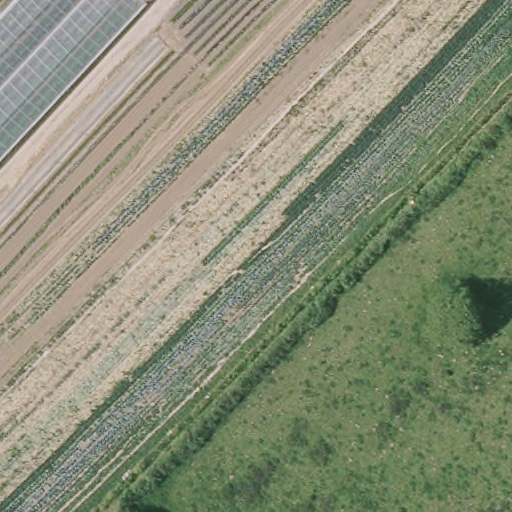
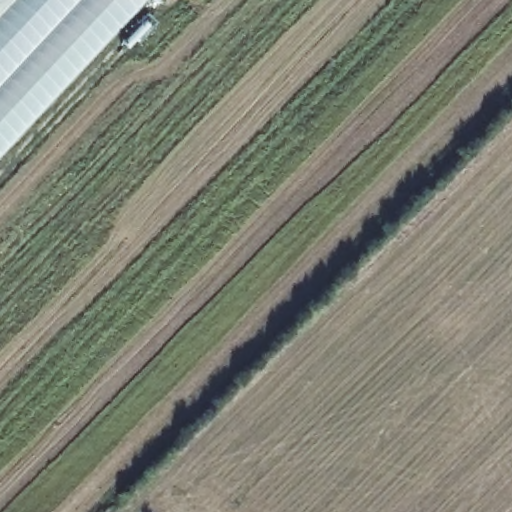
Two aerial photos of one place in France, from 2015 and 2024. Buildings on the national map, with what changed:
unchanged [(0,160),(0,0),(144,0),(146,3),(0,160)]

